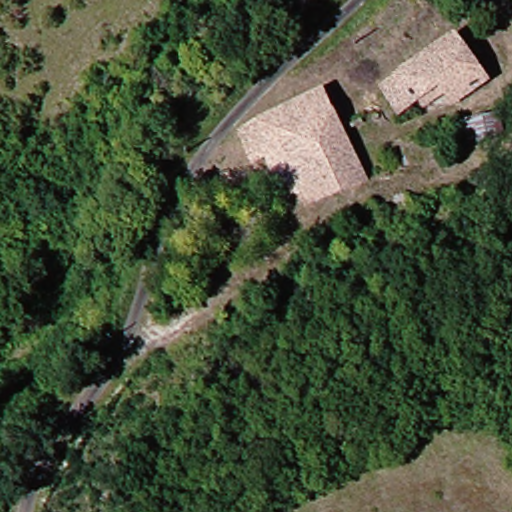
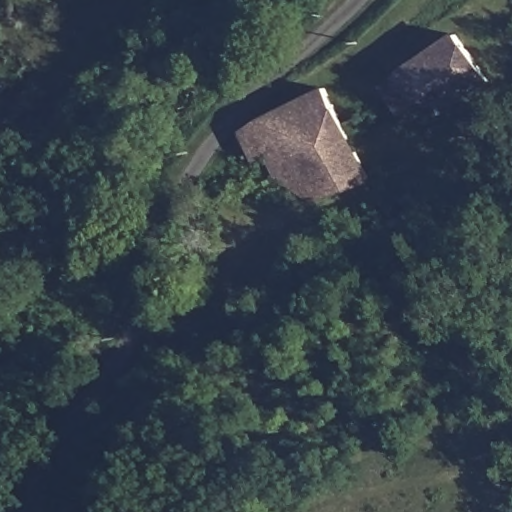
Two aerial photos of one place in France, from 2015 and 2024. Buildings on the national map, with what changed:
unchanged [(435,91),(409,110),(392,86),(467,32),(497,75),(462,101),(454,91),(443,100),(435,91)]
unchanged [(272,152),(261,157),(247,129),(330,86),(374,176),(323,203),(289,182),(272,152)]
unchanged [(512,114),(512,138),(489,143),(485,121),(512,114)]

